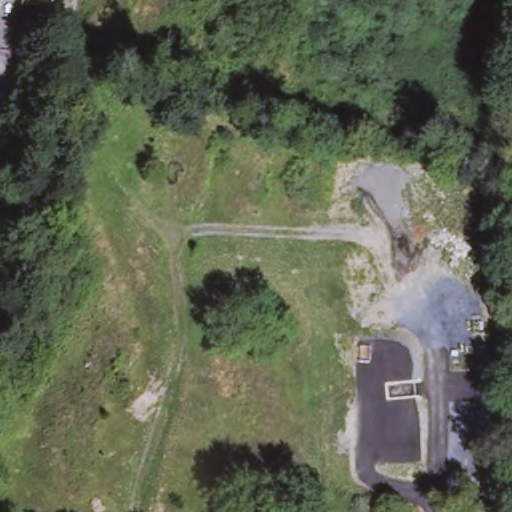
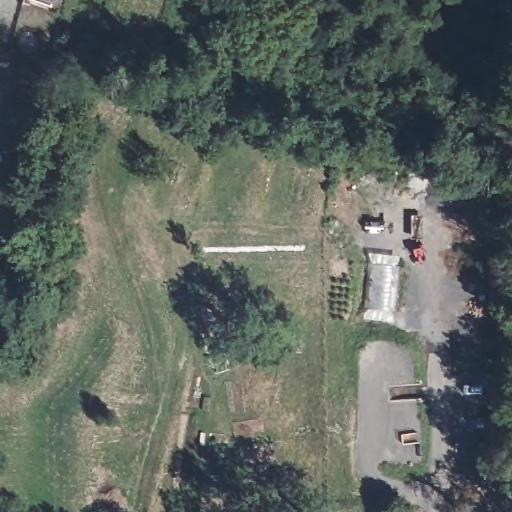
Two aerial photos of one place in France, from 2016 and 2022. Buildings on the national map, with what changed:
unchanged [(45,0),(53,0),(53,2),(45,0)]

